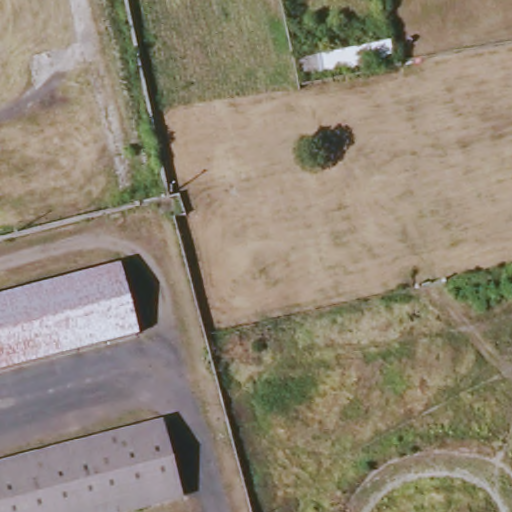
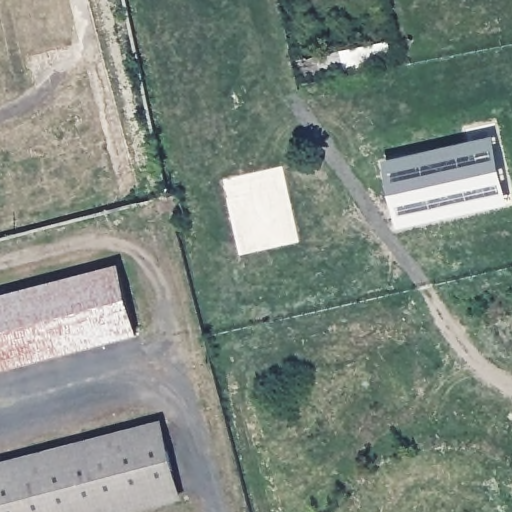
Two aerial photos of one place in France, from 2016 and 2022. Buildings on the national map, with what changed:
unchanged [(394,67),(299,87),(294,63),(389,43),(394,67)]
new [(399,229),(384,163),(495,139),(509,203),(399,229)]
unchanged [(112,269),(130,337),(0,372),(0,298),(112,269)]
unchanged [(171,496),(112,512),(0,512),(0,476),(156,435),(171,496)]

